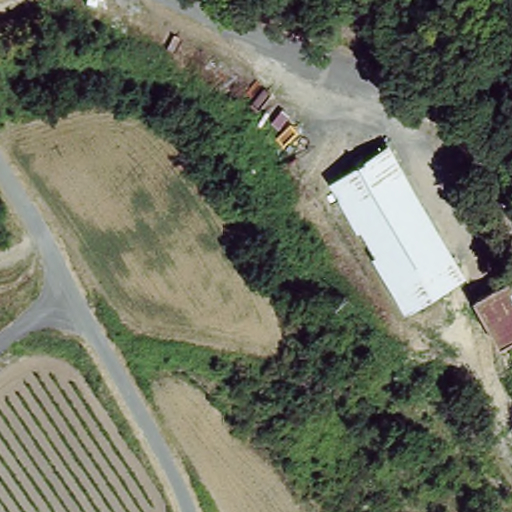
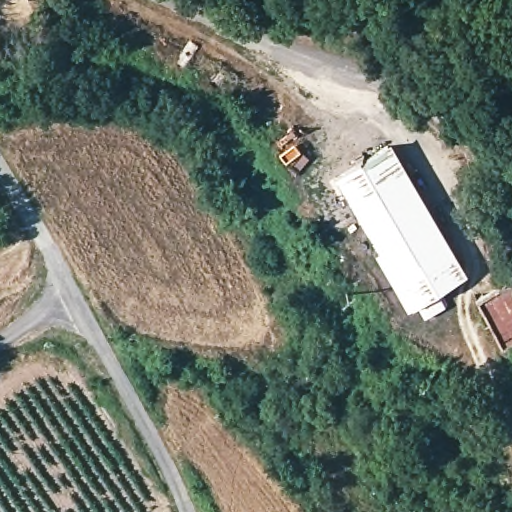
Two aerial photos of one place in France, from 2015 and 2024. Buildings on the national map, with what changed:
unchanged [(397,156),(465,288),(411,317),(345,185),(397,156)]
unchanged [(512,334),(498,340),(472,291),(512,270),(512,334)]

